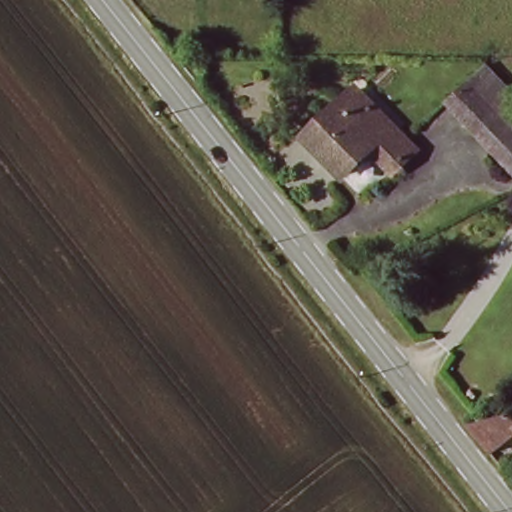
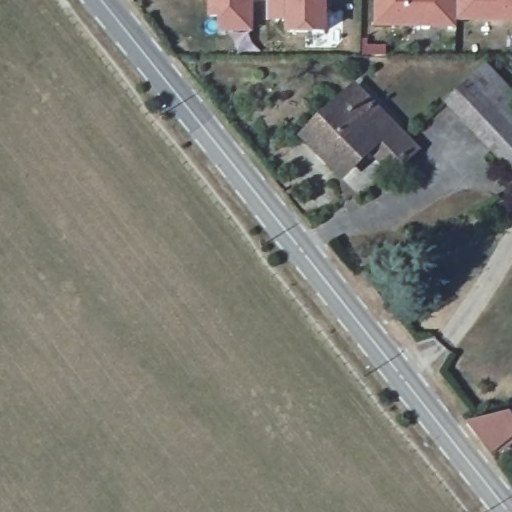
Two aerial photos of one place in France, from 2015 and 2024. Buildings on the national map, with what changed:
new [(253,33),(215,33),(214,18),(206,18),(206,0),(253,0),(253,33)]
new [(326,34),(281,34),(281,22),(267,22),(267,0),(329,0),(326,34)]
new [(373,0),(457,0),(457,21),(456,28),(373,26),(373,0)]
new [(457,0),(512,0),(512,22),(457,21),(457,0)]
unchanged [(447,102),(484,67),(512,93),(512,164),(495,147),(447,102)]
unchanged [(376,137),(357,116),(338,96),(351,86),(409,144),(396,156),(376,137)]
unchanged [(357,116),(376,137),(396,156),(389,163),(365,141),(336,168),(304,135),(338,96),(357,116)]
unchanged [(487,449),(466,423),(506,413),(512,421),(512,429),(487,449)]

